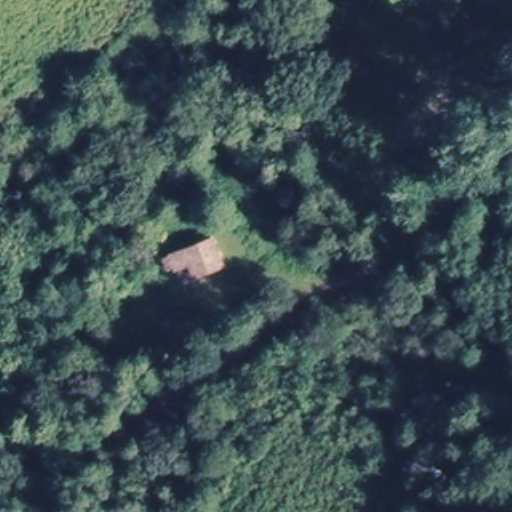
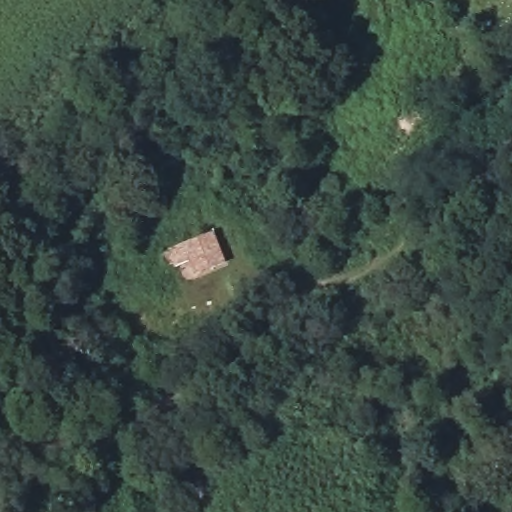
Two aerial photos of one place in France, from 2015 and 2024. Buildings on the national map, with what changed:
unchanged [(211,229),(224,260),(191,277),(187,267),(172,272),(164,254),(211,229)]

